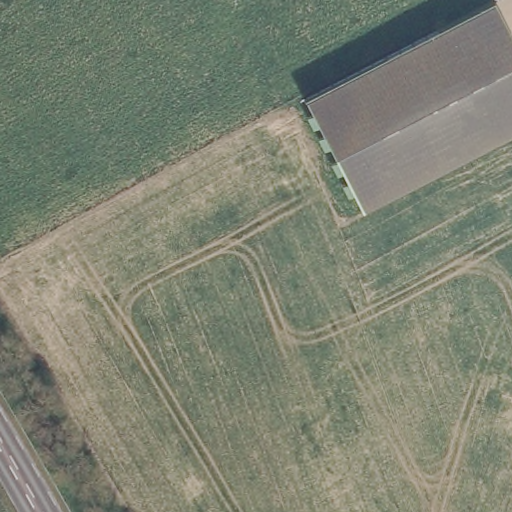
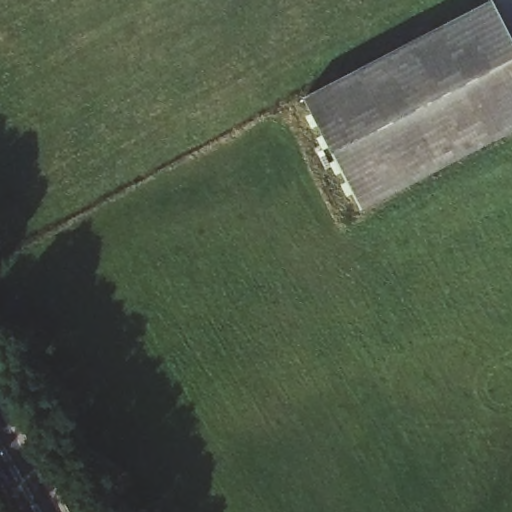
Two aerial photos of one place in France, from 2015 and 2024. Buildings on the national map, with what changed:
unchanged [(512,39),(512,135),(366,212),(304,99),(488,0),(492,0),(512,39)]

